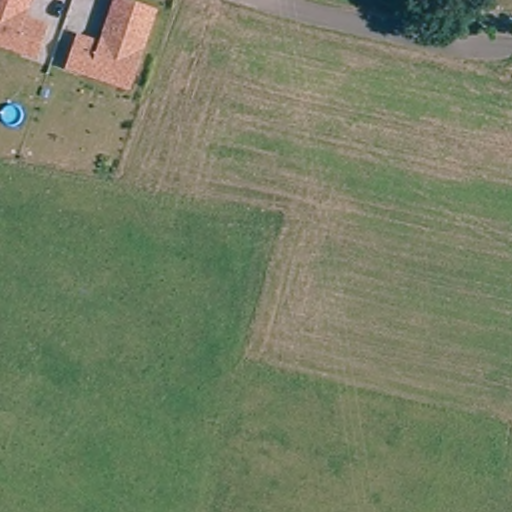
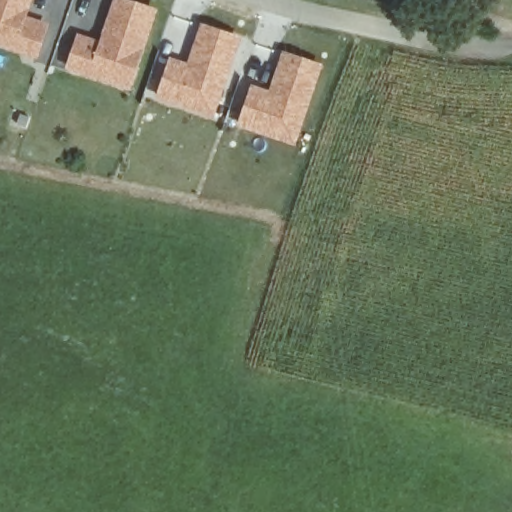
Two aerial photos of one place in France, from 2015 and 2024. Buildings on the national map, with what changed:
unchanged [(50,25),(38,58),(0,46),(0,0),(34,0),(28,16),(50,25)]
unchanged [(67,70),(79,34),(101,41),(115,0),(131,0),(159,10),(130,89),(67,70)]
new [(167,56),(185,61),(199,23),(242,36),(214,120),(152,99),(167,56)]
new [(249,83),(267,89),(281,50),(323,64),(294,147),(234,126),(249,83)]

